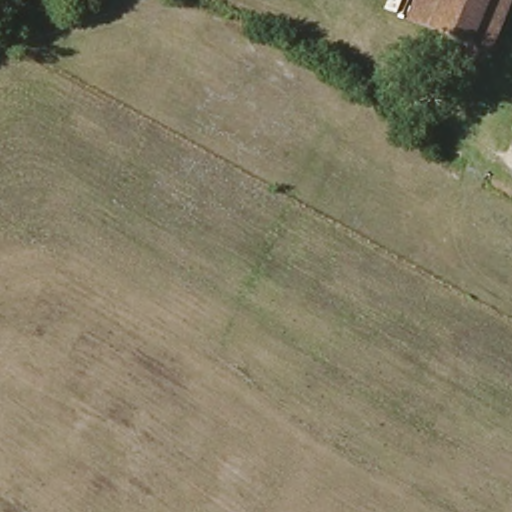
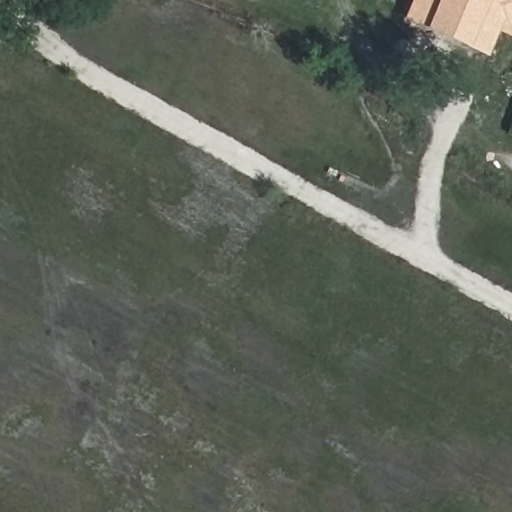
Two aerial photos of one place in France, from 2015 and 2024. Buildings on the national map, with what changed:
unchanged [(490,50),(413,17),(420,0),(511,0),(490,50)]

